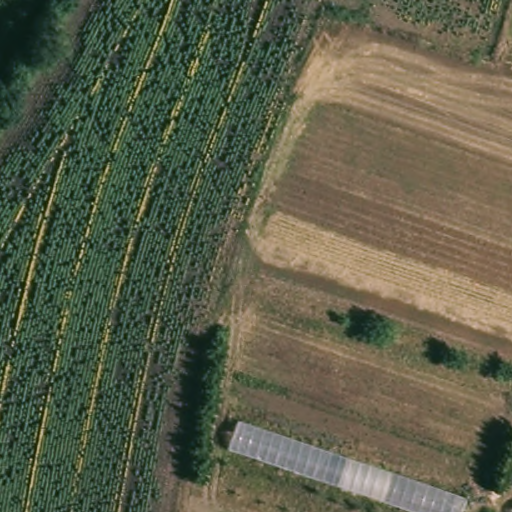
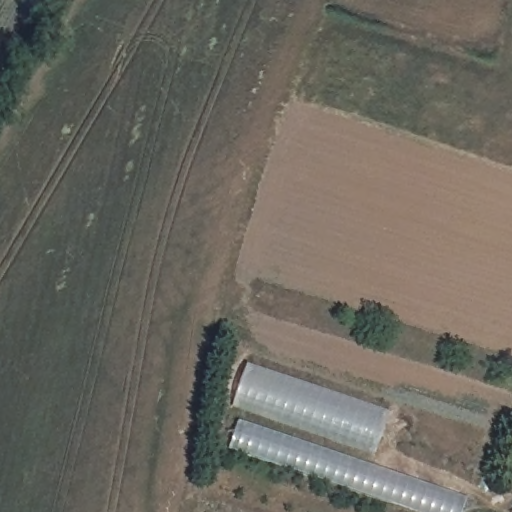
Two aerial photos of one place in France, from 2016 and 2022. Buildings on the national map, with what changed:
new [(232,408),(247,362),(390,411),(375,456),(232,408)]
unchanged [(238,420),(466,497),(461,512),(411,512),(228,448),(238,420)]

